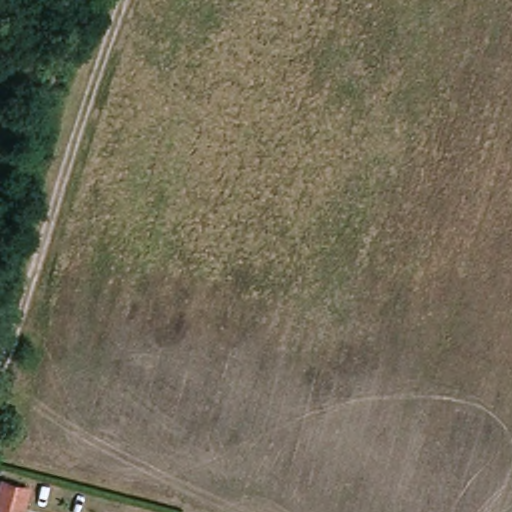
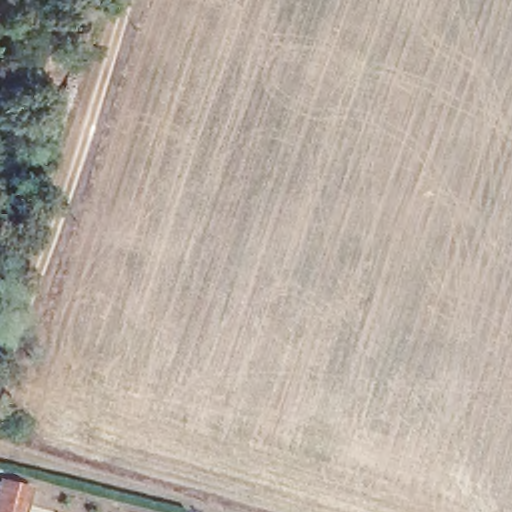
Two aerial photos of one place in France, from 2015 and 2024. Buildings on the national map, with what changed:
unchanged [(27,512),(0,512),(0,499),(9,474),(37,485),(27,512)]

